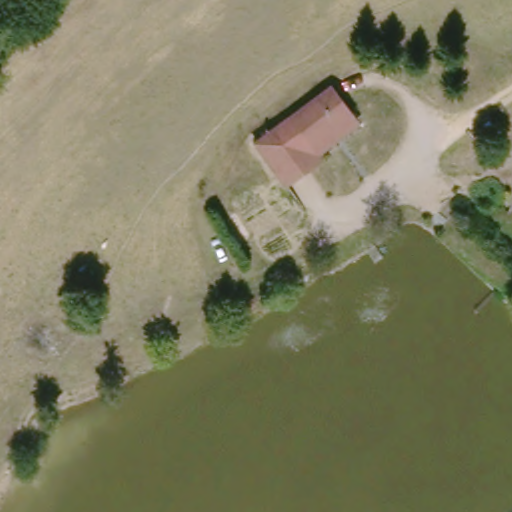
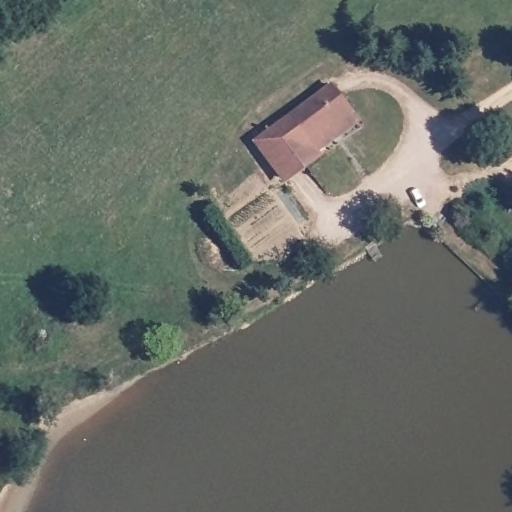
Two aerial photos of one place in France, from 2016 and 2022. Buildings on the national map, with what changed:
unchanged [(249,136),(326,81),(344,105),(352,116),(311,146),(272,175),(249,136)]

